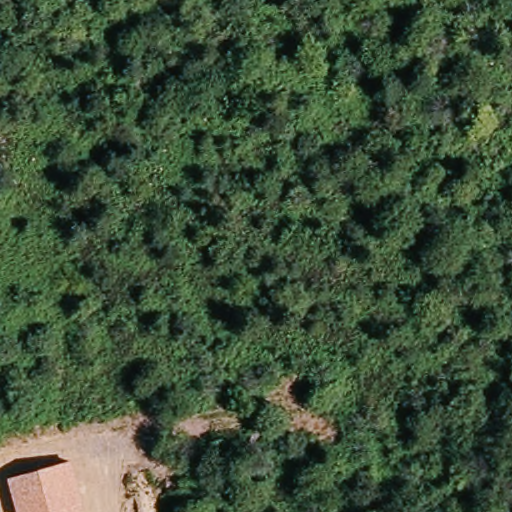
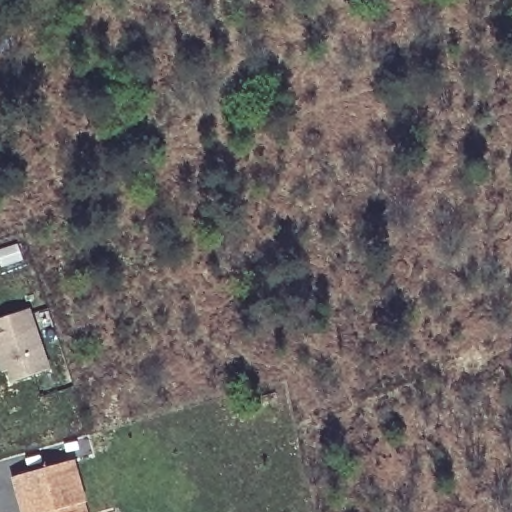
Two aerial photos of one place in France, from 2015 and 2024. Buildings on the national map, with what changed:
new [(10,382),(6,372),(0,373),(0,316),(29,306),(49,368),(10,382)]
unchanged [(19,512),(10,477),(73,459),(86,512),(19,512)]

